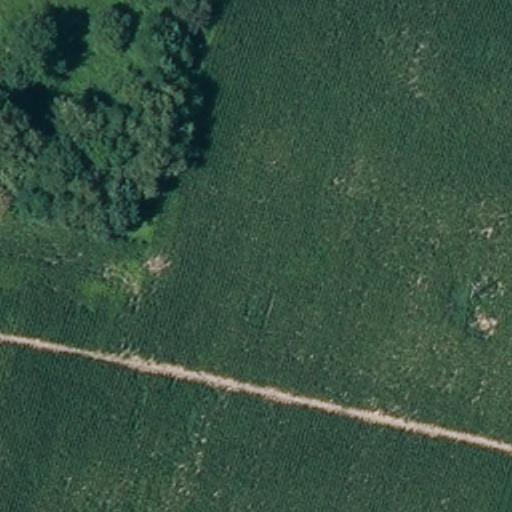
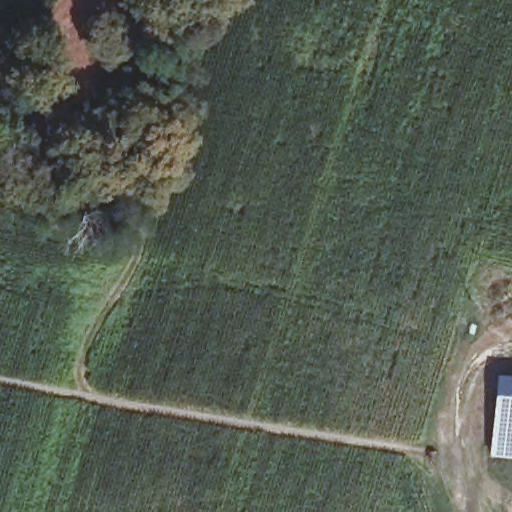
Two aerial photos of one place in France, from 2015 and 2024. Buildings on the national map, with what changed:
new [(496,373),(512,375),(512,394),(494,393),(496,373)]
new [(494,393),(512,394),(512,458),(490,456),(494,393)]

